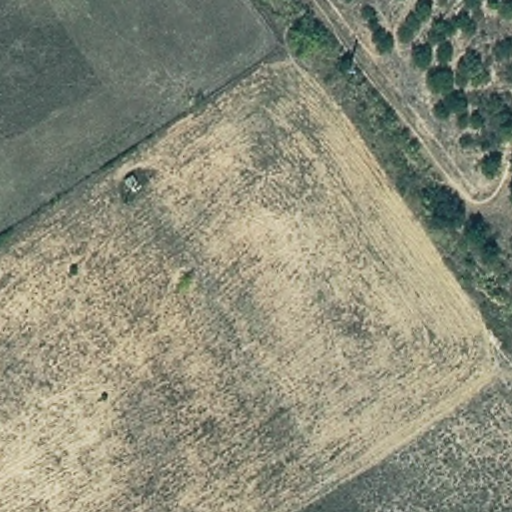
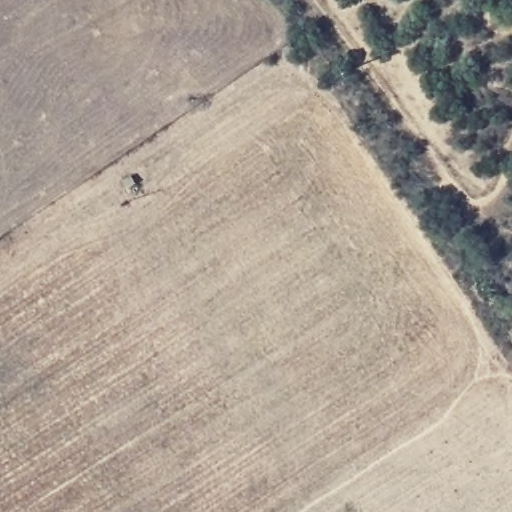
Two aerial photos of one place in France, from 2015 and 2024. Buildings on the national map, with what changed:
unchanged [(135,183),(129,187),(124,180),(130,176),(135,183)]

